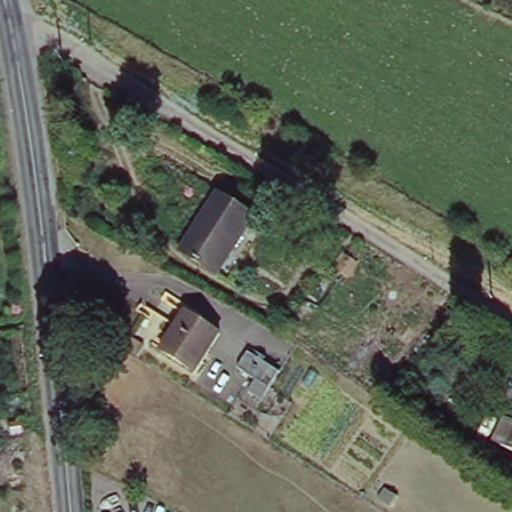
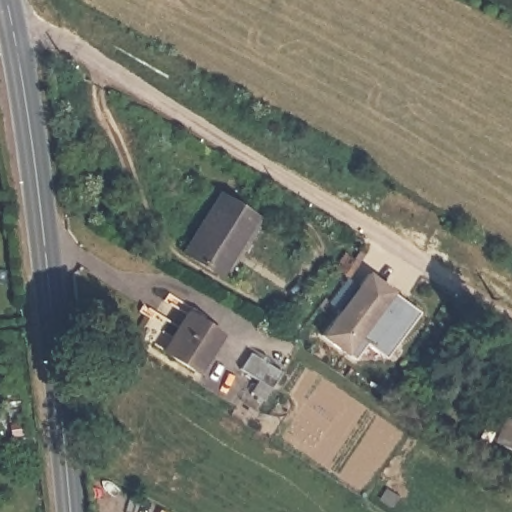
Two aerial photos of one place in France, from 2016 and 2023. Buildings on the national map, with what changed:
unchanged [(218,275),(182,252),(219,195),(255,218),(218,275)]
unchanged [(347,278),(337,270),(347,257),(357,264),(347,278)]
new [(418,316),(384,361),(363,346),(352,361),(321,337),(366,276),(418,316)]
unchanged [(196,367),(163,345),(187,309),(219,330),(196,367)]
unchanged [(137,357),(124,348),(129,341),(142,350),(137,357)]
unchanged [(270,389),(239,369),(250,353),(280,373),(270,389)]
unchanged [(500,446),(492,442),(504,417),(512,420),(512,419),(512,451),(500,446)]

